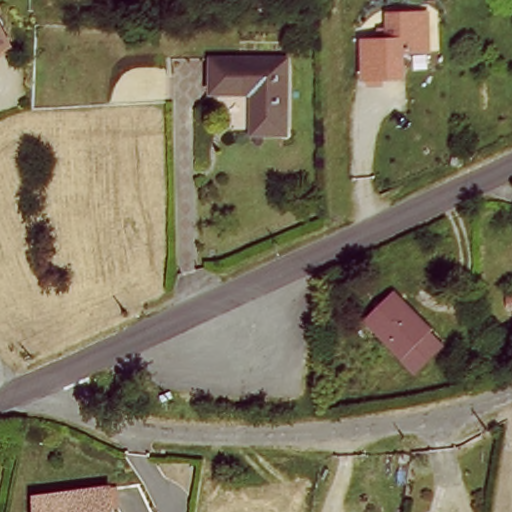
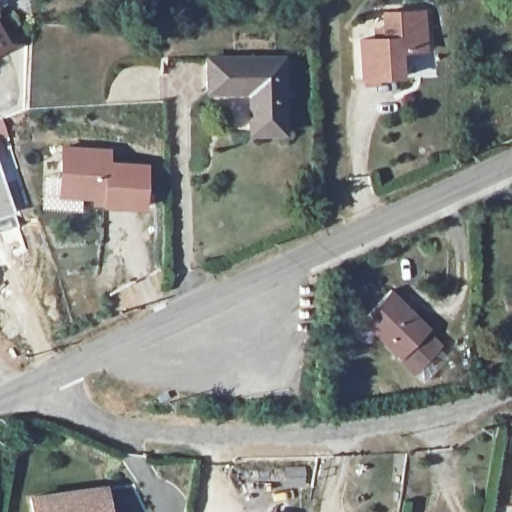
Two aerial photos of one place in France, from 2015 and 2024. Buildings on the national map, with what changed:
unchanged [(420,14),(421,52),(395,54),(397,79),(358,80),(356,41),(382,40),(380,15),(420,14)]
unchanged [(5,47),(0,50),(0,38),(5,47)]
unchanged [(283,60),(281,134),(248,134),(248,93),(206,91),(207,57),(283,60)]
new [(1,116),(8,147),(0,149),(0,117),(1,116)]
new [(111,149),(111,164),(151,165),(149,211),(80,207),(81,196),(54,195),(58,146),(111,149)]
new [(20,227),(0,234),(0,162),(20,227)]
unchanged [(410,370),(360,318),(390,288),(425,322),(429,325),(426,330),(439,343),(425,358),(410,370)]
unchanged [(31,494),(109,485),(111,512),(33,512),(31,494)]

